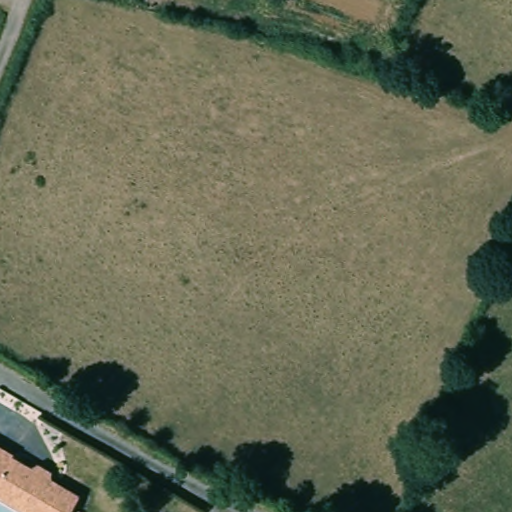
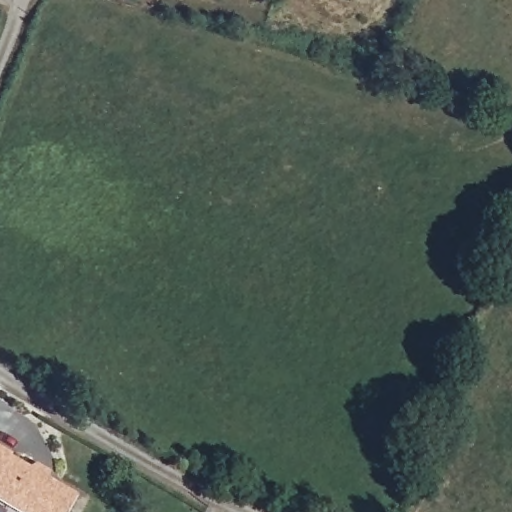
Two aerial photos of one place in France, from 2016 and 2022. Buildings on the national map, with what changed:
unchanged [(16,455),(15,457),(34,469),(40,466),(53,474),(52,481),(81,500),(73,512),(26,512),(0,496),(0,445),(16,455)]

